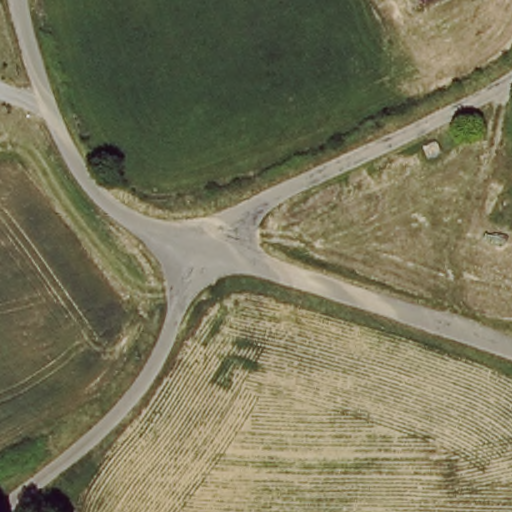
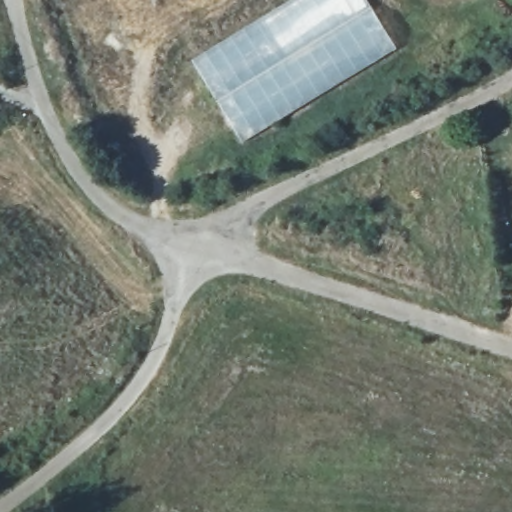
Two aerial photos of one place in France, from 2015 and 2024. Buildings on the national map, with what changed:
new [(294,0),(367,0),(399,51),(241,145),(191,62),(294,0)]

